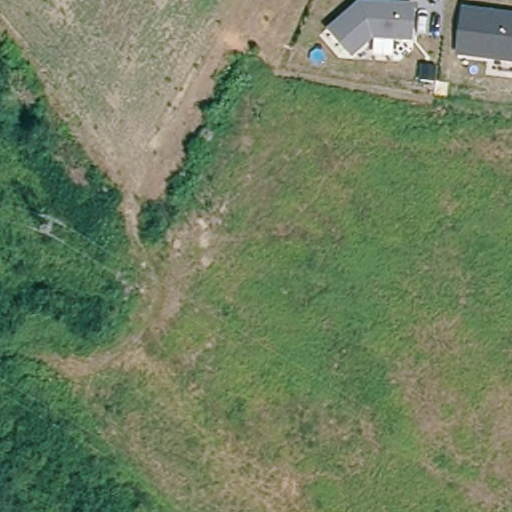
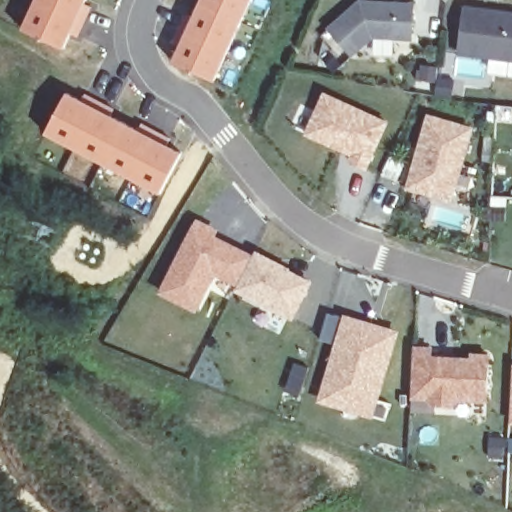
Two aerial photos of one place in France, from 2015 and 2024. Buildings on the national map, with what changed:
new [(88,0),(86,3),(92,6),(79,36),(72,33),(65,48),(24,29),(38,0),(88,0)]
new [(180,47),(173,44),(186,15),(193,18),(201,0),(251,0),(214,81),(173,62),(180,47)]
unchanged [(412,39),(373,36),(353,54),(329,28),(361,0),(415,3),(412,39)]
unchanged [(466,8),(512,15),(512,61),(460,54),(466,8)]
unchanged [(437,73),(424,71),(425,57),(439,59),(437,73)]
new [(48,132),(69,92),(83,101),(87,94),(115,108),(112,115),(140,130),(143,123),(172,138),(168,145),(184,152),(162,192),(48,132)]
new [(324,94),(387,122),(366,167),(350,160),(356,149),(345,144),(342,149),(307,133),(324,94)]
new [(418,156),(421,148),(430,116),(472,128),(451,198),(410,186),(418,156)]
new [(345,144),(356,149),(353,154),(342,149),(345,144)]
new [(195,217),(219,228),(215,233),(253,253),(233,290),(216,280),(196,314),(156,294),(195,217)]
new [(253,253),(255,249),(312,280),(290,321),(256,305),(233,290),(253,253)]
new [(332,344),(316,339),(326,311),(341,316),(342,312),(399,330),(372,419),(314,402),(332,344)]
new [(411,412),(412,398),(414,347),(432,348),(431,357),(473,359),(473,354),(489,355),(487,401),(459,400),(452,406),(436,405),(436,413),(411,412)]
new [(292,361),(307,366),(297,396),(281,389),(292,361)]
new [(512,399),(512,421),(511,420),(512,399)]
new [(512,451),(510,451),(510,437),(512,438),(512,451)]

